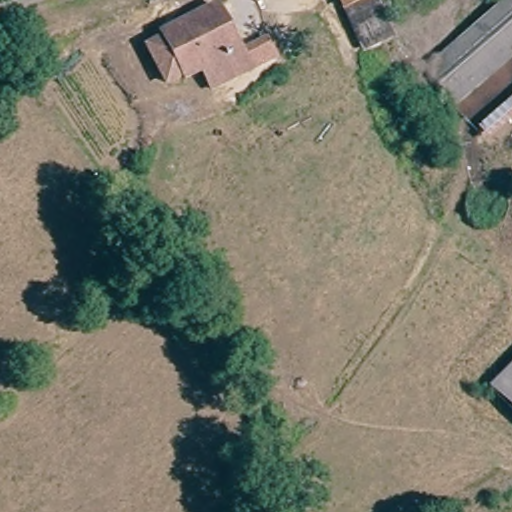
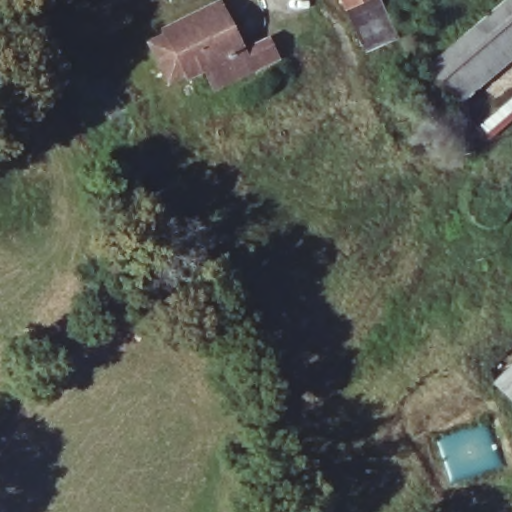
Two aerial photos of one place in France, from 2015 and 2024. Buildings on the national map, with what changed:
unchanged [(379,37),(347,54),(317,0),(360,0),(379,37)]
unchanged [(454,99),(429,69),(505,0),(512,0),(512,46),(454,99)]
unchanged [(204,75),(194,78),(194,76),(175,81),(159,45),(181,35),(233,12),(256,77),(229,88),(214,95),(204,75)]
unchanged [(489,140),(481,130),(512,101),(512,120),(489,140)]
unchanged [(458,207),(461,200),(466,195),(472,192),(479,191),(486,192),(492,195),(497,201),(499,207),(500,215),(499,221),(496,227),(491,231),(485,235),(479,235),(472,234),(466,231),(461,226),(458,220),(457,214),(458,207)]
unchanged [(501,382),(512,371),(512,393),(501,382)]

